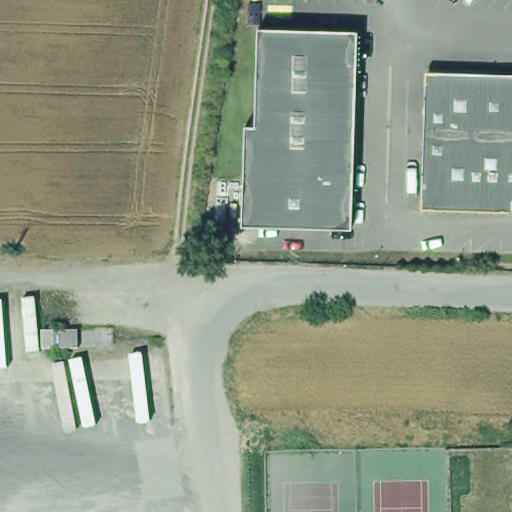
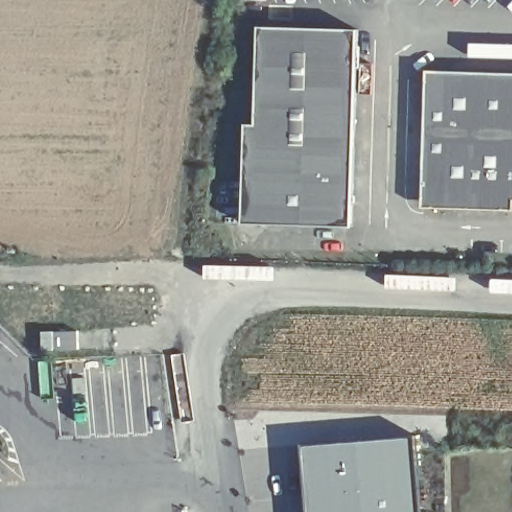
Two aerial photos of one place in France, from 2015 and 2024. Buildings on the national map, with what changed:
unchanged [(351,229),(241,227),(242,126),(253,126),(256,28),(356,30),(351,229)]
unchanged [(503,214),(432,213),(422,202),(426,85),(439,74),(512,75),(512,206),(503,214)]
unchanged [(44,350),(43,332),(75,331),(79,331),(79,349),(74,349),(44,350)]
new [(407,437),(413,512),(302,512),(298,448),(407,437)]

